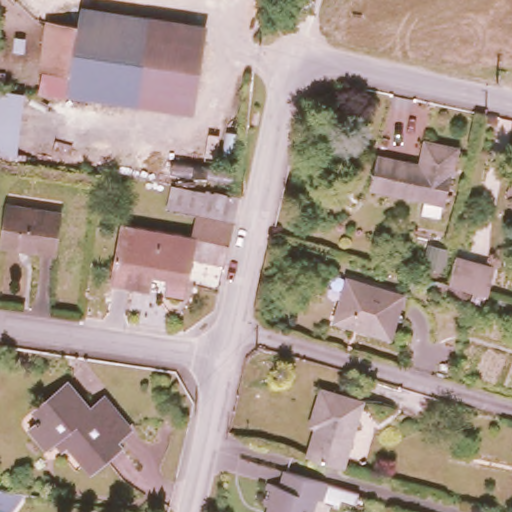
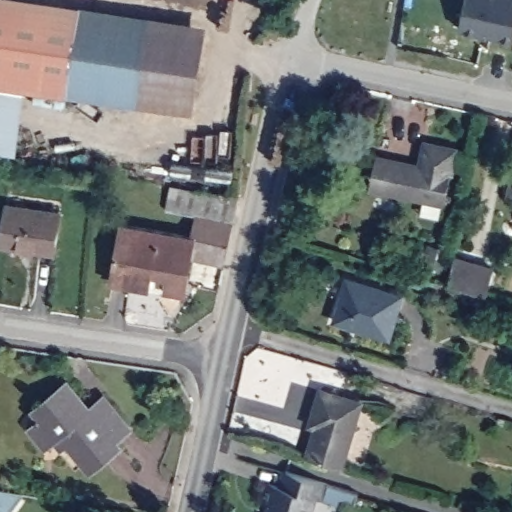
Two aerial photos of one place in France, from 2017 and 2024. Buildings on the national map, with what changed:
new [(76,10),(60,100),(24,94),(0,91),(0,0),(17,0),(76,10)]
new [(460,30),(466,0),(512,0),(512,40),(460,30)]
unchanged [(76,10),(206,32),(191,117),(60,100),(64,78),(73,26),(76,10)]
unchanged [(24,94),(14,151),(0,150),(0,91),(24,94)]
unchanged [(415,165),(419,142),(451,149),(439,203),(364,187),(371,156),(415,165)]
unchanged [(508,168),(512,169),(512,199),(502,197),(508,168)]
unchanged [(143,287),(107,281),(117,224),(188,236),(192,217),(161,211),(165,185),(235,196),(220,265),(187,257),(180,295),(160,292),(161,283),(145,280),(143,287)]
unchanged [(1,205),(56,213),(50,253),(0,246),(0,212),(1,205)]
unchanged [(488,267),(482,295),(443,283),(449,257),(488,267)]
unchanged [(397,295),(384,337),(330,321),(342,278),(397,295)]
unchanged [(58,447),(50,439),(41,447),(25,428),(30,424),(29,422),(33,417),(35,419),(40,415),(33,407),(62,382),(84,409),(98,396),(125,429),(111,441),(115,446),(86,471),(63,443),(58,447)]
unchanged [(337,462),(302,452),(303,450),(312,421),(305,420),(316,385),(356,396),(338,460),(337,462)]
unchanged [(316,501),(313,512),(268,512),(268,510),(261,508),(268,487),(279,490),(284,475),(327,487),(322,503),(316,501)]

